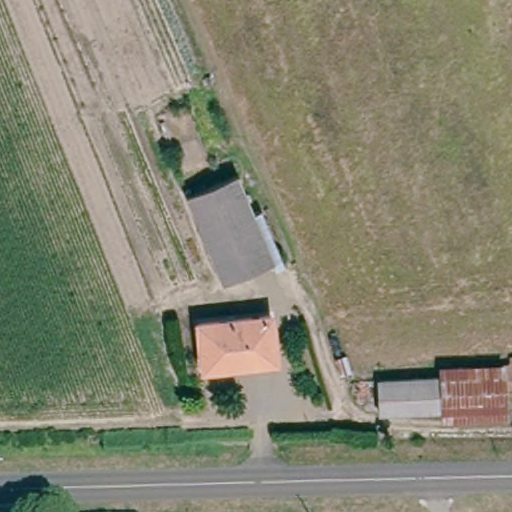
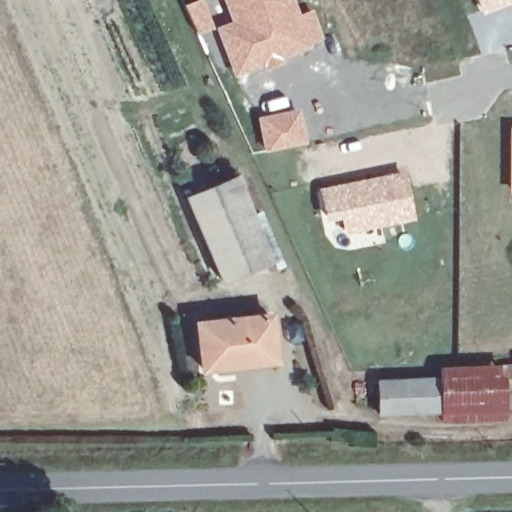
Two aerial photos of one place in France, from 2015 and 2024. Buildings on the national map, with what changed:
new [(214,27),(197,35),(184,5),(194,0),(204,0),(214,27)]
new [(301,12),(313,8),(325,40),(274,63),(235,77),(214,27),(229,20),(222,0),(296,0),(301,12)]
new [(512,3),(481,15),(475,0),(512,0),(512,3)]
new [(301,106),(308,144),(263,153),(256,116),(301,106)]
new [(512,196),(509,196),(508,125),(512,125),(512,196)]
new [(407,169),(416,220),(343,234),(339,219),(324,221),(317,186),(407,169)]
unchanged [(234,175),(273,260),(226,281),(184,199),(234,175)]
unchanged [(239,367),(203,371),(190,325),(261,311),(272,352),(274,362),(239,367)]
unchanged [(467,413),(460,420),(377,417),(377,379),(437,381),(438,365),(466,367),(467,413)]
unchanged [(506,390),(500,395),(500,413),(467,413),(466,367),(506,368),(506,390)]

